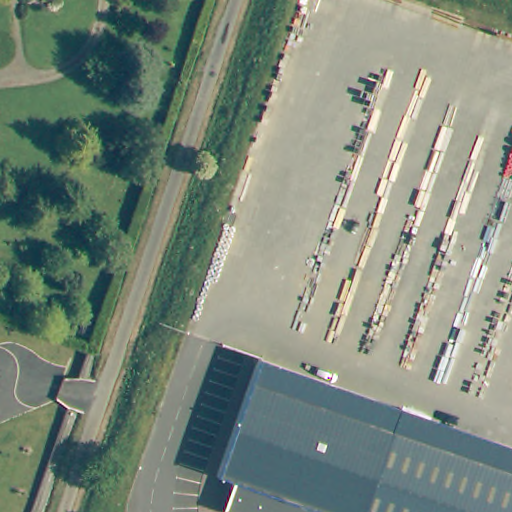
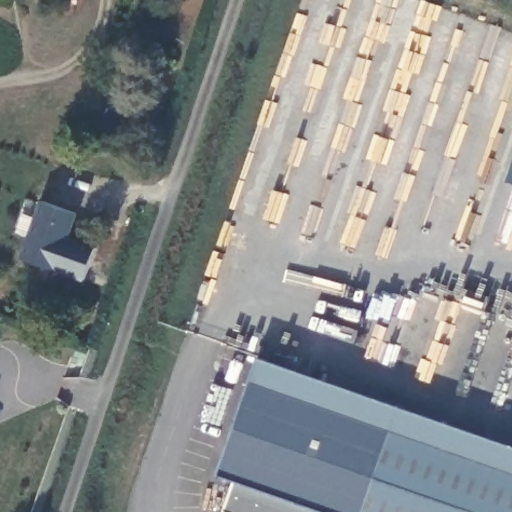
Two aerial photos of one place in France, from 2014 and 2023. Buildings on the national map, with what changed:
new [(512,166),(512,183),(506,181),(512,166)]
new [(69,238),(96,247),(83,281),(19,258),(40,200),(78,213),(69,238)]
unchanged [(217,478),(256,358),(512,447),(512,512),(221,512),(231,483),(217,478)]

